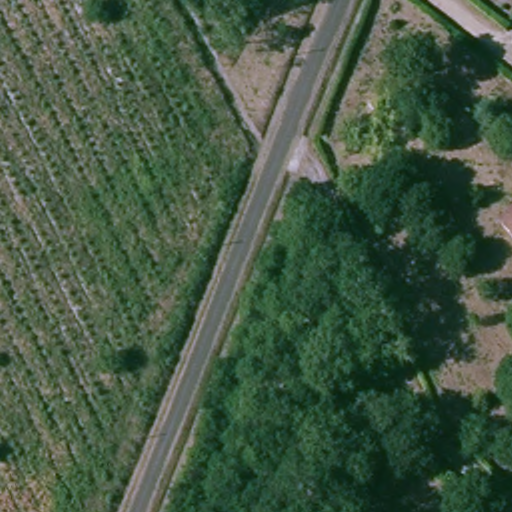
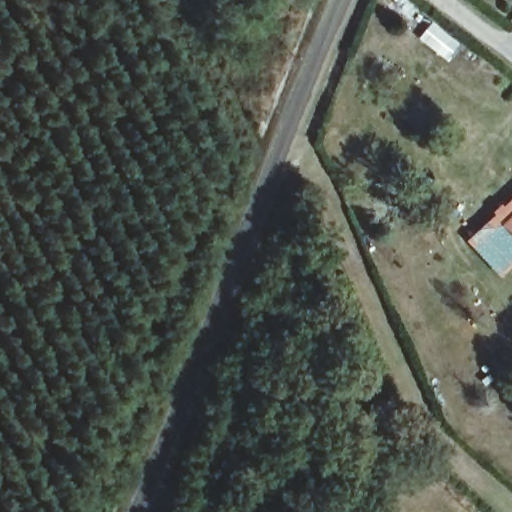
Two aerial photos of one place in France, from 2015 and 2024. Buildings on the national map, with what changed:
new [(495,215),(492,212),(500,205),(503,207),(512,197),(512,209),(498,222),(512,237),(512,266),(500,278),(466,242),(495,215)]
unchanged [(512,209),(512,237),(498,222),(512,209)]

